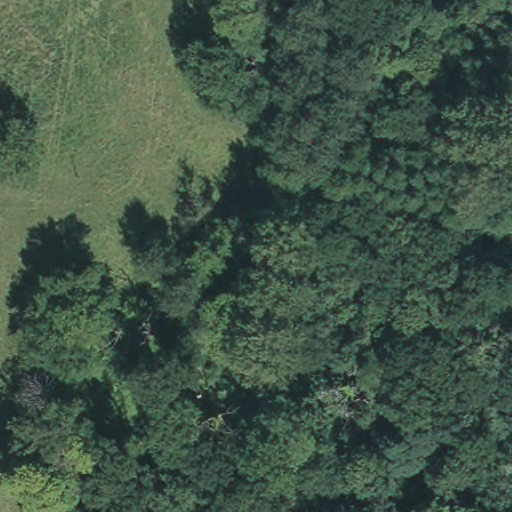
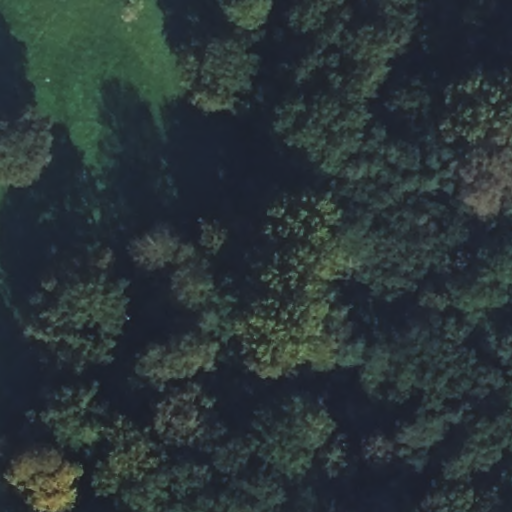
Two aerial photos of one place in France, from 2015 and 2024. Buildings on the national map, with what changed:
[]

